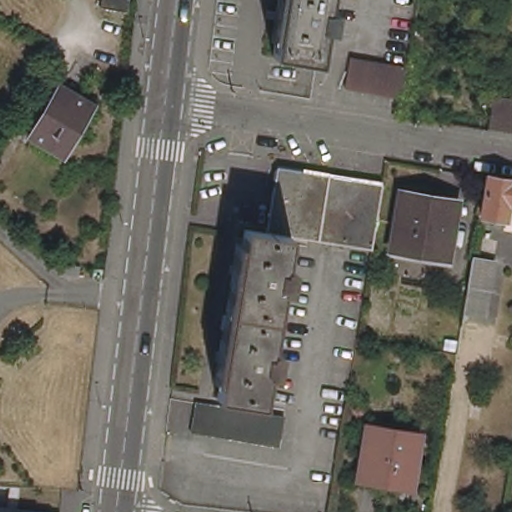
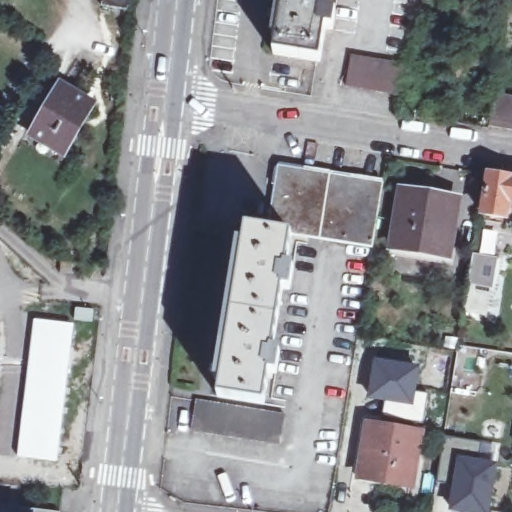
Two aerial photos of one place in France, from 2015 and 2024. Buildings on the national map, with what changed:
unchanged [(103,8),(104,0),(132,0),(130,12),(103,8)]
unchanged [(338,11),(334,31),(326,30),(321,63),(274,56),(283,0),(331,0),(329,9),(338,11)]
unchanged [(408,67),(403,98),(346,88),(352,57),(408,67)]
unchanged [(98,104),(66,156),(32,136),(63,84),(98,104)]
unchanged [(512,99),(512,131),(489,127),(494,96),(512,99)]
unchanged [(278,166),(331,174),(329,182),(320,240),(294,235),(268,231),(278,166)]
unchanged [(384,182),(373,249),(320,240),(329,182),(331,174),(384,182)]
unchanged [(508,225),(509,219),(483,213),(489,175),(512,178),(512,226),(508,225)]
unchanged [(447,257),(394,249),(401,201),(403,191),(421,194),(457,199),(447,257)]
unchanged [(288,265),(296,267),(291,292),(284,291),(274,349),(282,351),(278,375),(270,374),(265,405),(218,397),(246,227),(268,231),(294,235),(288,265)]
unchanged [(494,261),(486,314),(465,311),(469,288),(474,257),(494,261)]
unchanged [(90,272),(85,281),(68,270),(73,262),(90,272)]
new [(19,457),(37,321),(75,325),(58,463),(19,457)]
new [(373,357),(419,365),(416,392),(427,393),(424,410),(397,409),(396,415),(382,414),(384,402),(365,398),(373,357)]
unchanged [(286,415),(279,445),(193,431),(197,401),(286,415)]
unchanged [(384,482),(384,478),(361,473),(369,422),(397,427),(388,482),(384,482)]
unchanged [(421,432),(412,486),(388,482),(397,427),(421,432)]
new [(444,437),(481,443),(478,461),(498,463),(490,512),(449,512),(453,487),(435,483),(444,437)]
new [(0,507),(51,512),(0,512),(0,507)]

